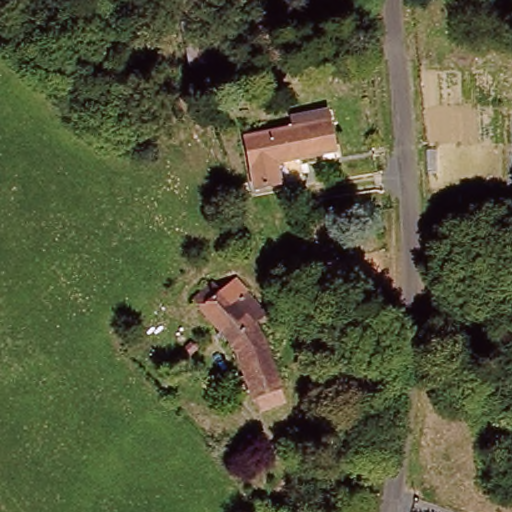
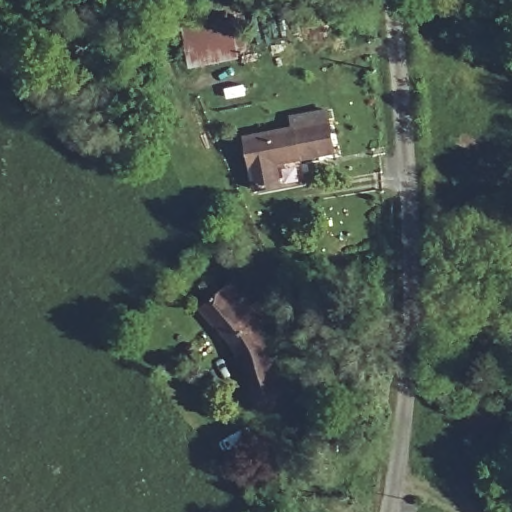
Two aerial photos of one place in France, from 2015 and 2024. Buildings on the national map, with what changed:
new [(182,26),(244,17),(248,48),(236,50),(240,57),(191,68),(182,26)]
unchanged [(247,163),(243,164),(242,132),(290,123),(288,113),(328,107),(337,154),(277,164),(281,184),(252,191),(247,163)]
unchanged [(438,328),(471,282),(491,297),(458,343),(438,328)]
unchanged [(254,329),(244,339),(236,334),(229,339),(215,326),(195,305),(211,289),(216,292),(227,283),(242,295),(260,313),(250,325),(254,329)]
unchanged [(262,401),(236,346),(257,336),(289,402),(280,406),(268,413),(262,401)]

